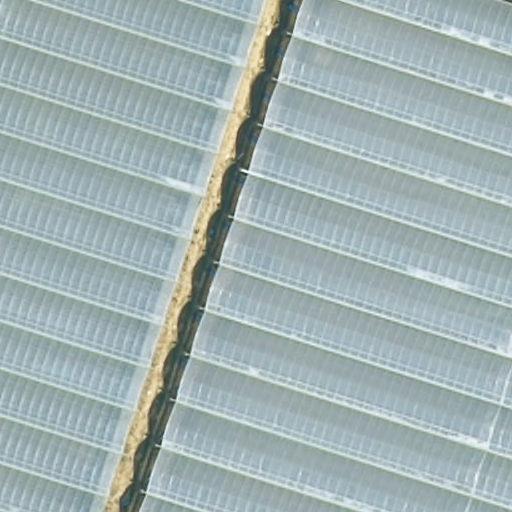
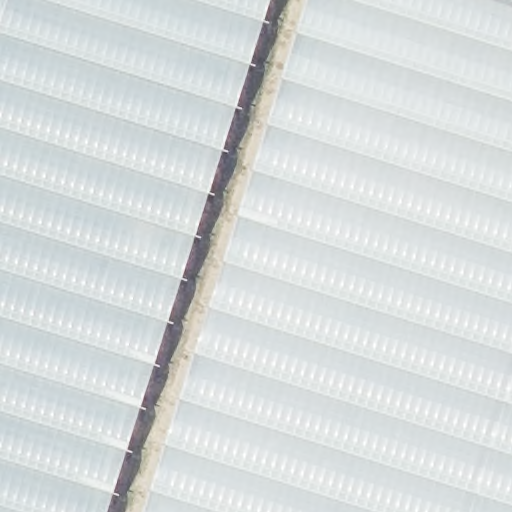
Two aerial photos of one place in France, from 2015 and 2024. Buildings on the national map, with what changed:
unchanged [(272,0),(109,512),(0,512),(0,0),(272,0)]
unchanged [(512,0),(512,512),(145,512),(309,0),(512,0)]

